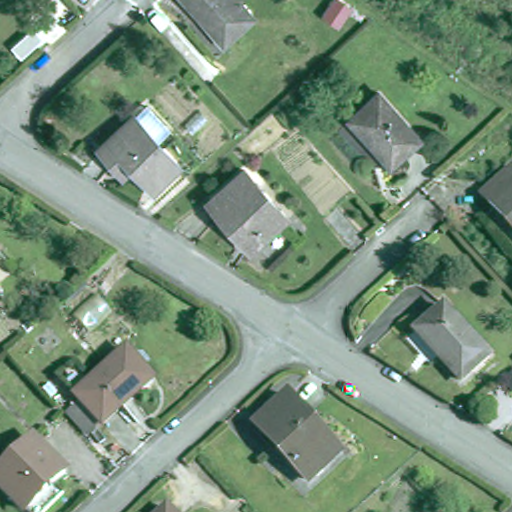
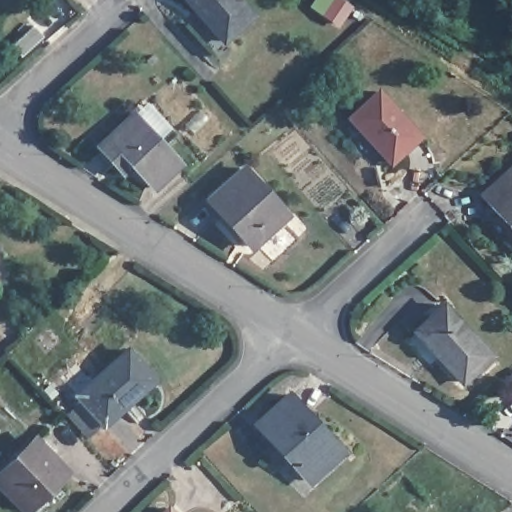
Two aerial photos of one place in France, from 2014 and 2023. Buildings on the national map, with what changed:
unchanged [(224,42),(185,0),(236,0),(252,18),(224,42)]
unchanged [(419,142),(390,166),(347,119),(376,94),(419,142)]
unchanged [(152,188),(126,157),(114,167),(97,147),(132,116),(147,104),(170,130),(156,142),(179,165),(152,188)]
unchanged [(288,215),(253,245),(212,195),(245,165),(288,215)]
unchanged [(482,192),(512,167),(512,224),(482,192)]
unchanged [(460,382),(415,330),(442,305),(489,356),(460,382)]
unchanged [(130,405),(109,423),(81,392),(130,347),(154,372),(125,400),(130,405)]
unchanged [(334,450),(320,461),(325,466),(306,482),(287,460),(291,457),(261,420),(287,397),(334,450)]
unchanged [(49,477),(60,487),(37,512),(0,476),(0,467),(32,432),(62,462),(49,477)]
unchanged [(175,512),(160,512),(168,505),(175,512)]

